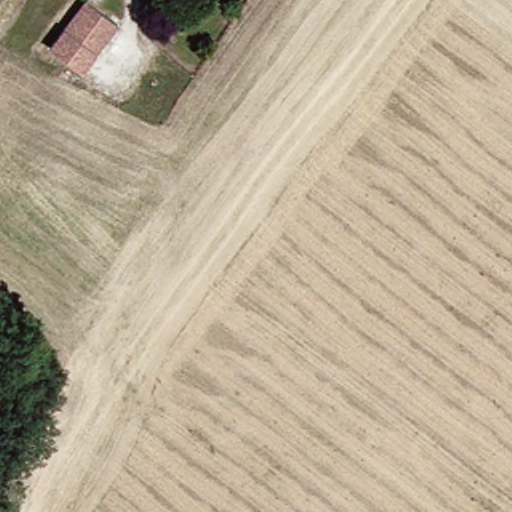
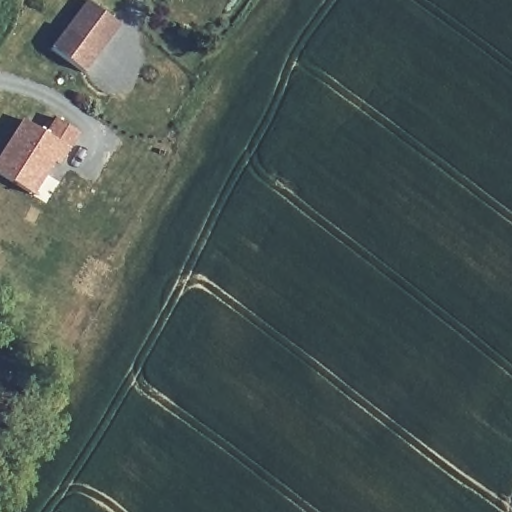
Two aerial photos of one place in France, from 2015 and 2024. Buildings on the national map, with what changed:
unchanged [(125,22),(90,71),(56,47),(91,0),(94,0),(125,22)]
new [(71,146),(61,161),(56,158),(34,191),(0,169),(0,151),(24,115),(71,146)]

